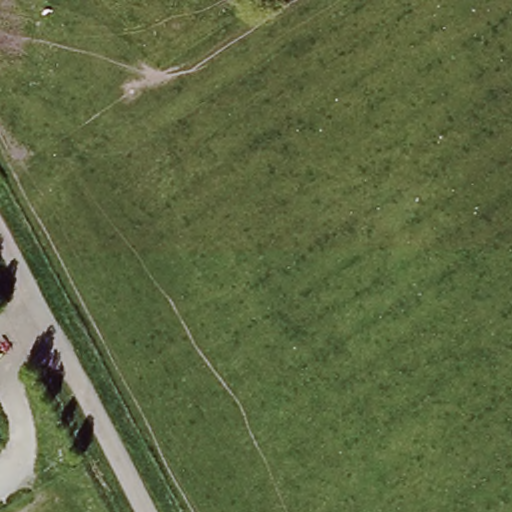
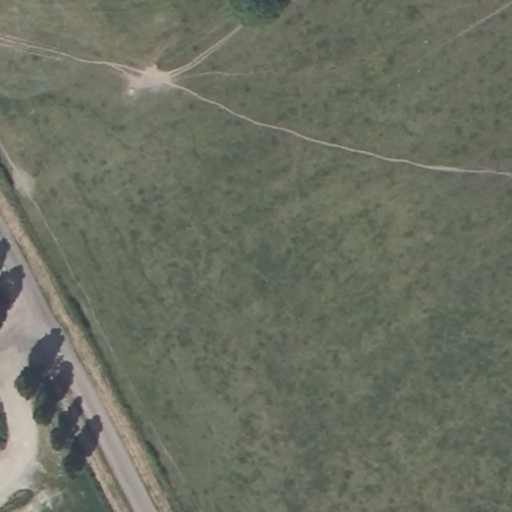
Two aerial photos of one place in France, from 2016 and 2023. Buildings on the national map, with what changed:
[]

